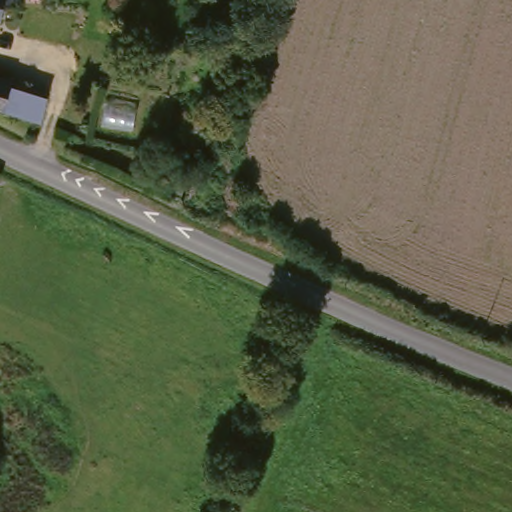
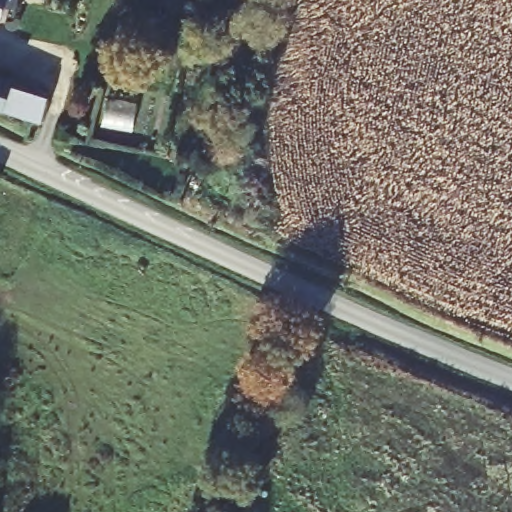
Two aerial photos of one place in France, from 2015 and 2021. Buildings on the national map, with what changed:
unchanged [(14,9),(0,6),(0,0),(15,0),(14,9)]
unchanged [(210,82),(212,64),(231,66),(229,82),(210,82)]
unchanged [(0,74),(6,76),(3,84),(45,94),(40,120),(0,109),(0,74)]

